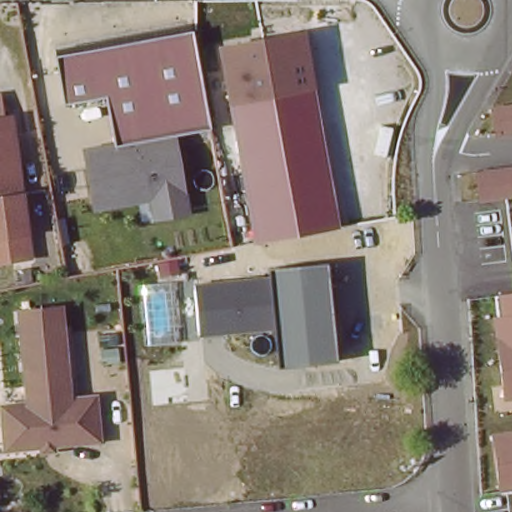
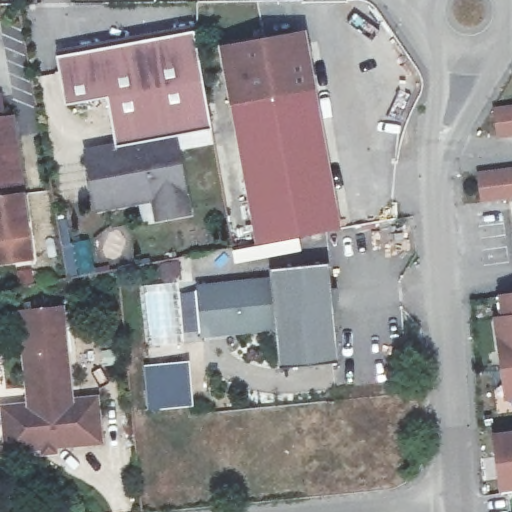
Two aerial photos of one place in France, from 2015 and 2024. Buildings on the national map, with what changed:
unchanged [(195,31),(211,128),(177,135),(192,214),(157,220),(154,202),(95,213),(86,149),(117,144),(108,98),(67,104),(57,56),(195,31)]
unchanged [(307,35),(344,231),(263,246),(227,50),(307,35)]
unchanged [(10,121),(21,120),(38,261),(0,268),(0,97),(5,96),(10,121)]
new [(512,106),(512,132),(497,134),(492,109),(512,106)]
unchanged [(480,201),(477,174),(512,169),(512,197),(480,201)]
unchanged [(272,282),(272,270),(330,265),(338,362),(282,369),(277,334),(203,338),(198,287),(272,282)]
unchanged [(512,294),(512,401),(503,402),(492,319),(500,318),(500,296),(512,294)]
unchanged [(60,311),(70,404),(95,401),(100,444),(7,453),(2,411),(29,408),(20,315),(60,311)]
new [(190,359),(193,407),(147,412),(142,364),(190,359)]
unchanged [(512,433),(512,491),(497,492),(492,436),(512,433)]

